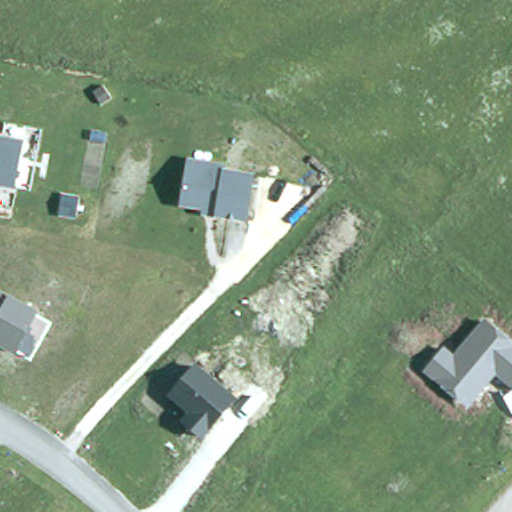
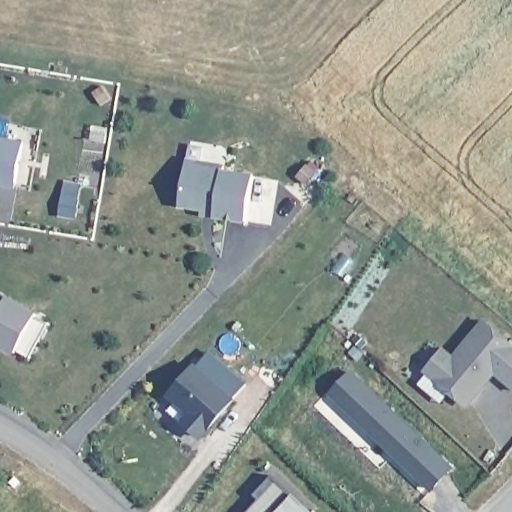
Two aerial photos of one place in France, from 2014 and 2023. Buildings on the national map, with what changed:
unchanged [(23,140),(11,185),(0,184),(0,135),(23,140)]
unchanged [(222,163),(222,168),(255,174),(247,223),(200,216),(200,209),(180,206),(187,158),(222,163)]
new [(82,184),(80,219),(59,217),(62,183),(82,184)]
unchanged [(39,312),(29,331),(37,339),(29,356),(10,354),(0,349),(0,290),(39,312)]
unchanged [(512,390),(492,377),(466,407),(422,372),(445,347),(454,353),(485,319),(512,341),(512,390)]
unchanged [(237,399),(200,442),(178,422),(186,413),(167,398),(166,398),(195,364),(237,399)]
new [(455,466),(431,491),(327,392),(352,367),(455,466)]
new [(247,512),(258,499),(253,495),(272,474),(313,512),(247,512)]

